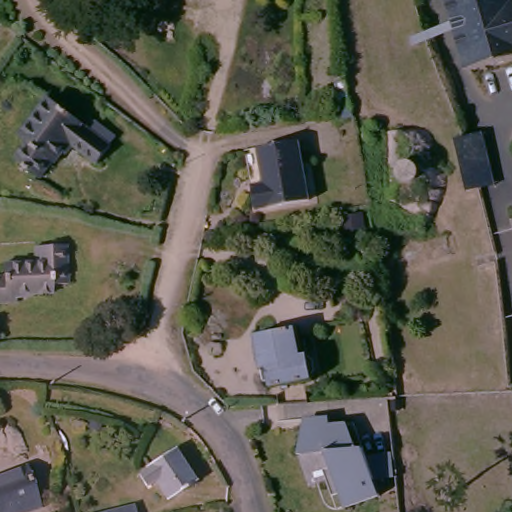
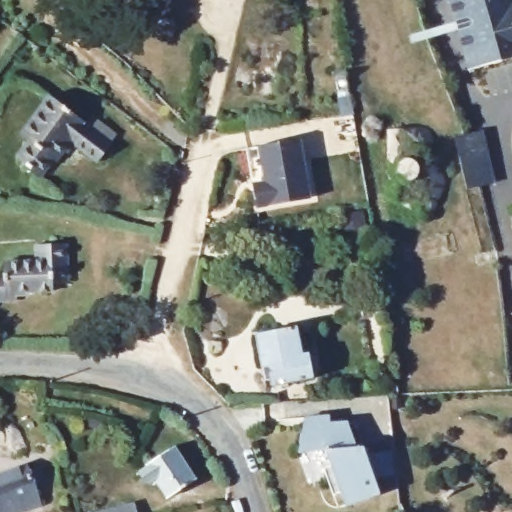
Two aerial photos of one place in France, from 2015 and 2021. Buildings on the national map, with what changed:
unchanged [(512,0),(512,68),(511,65),(507,66),(488,71),(488,72),(489,75),(484,76),(483,73),(474,75),(472,76),(473,79),(469,80),(446,0),(512,0)]
unchanged [(344,94),(333,96),(329,79),(342,77),(344,94)]
unchanged [(107,150),(94,168),(68,149),(53,169),(49,166),(37,182),(13,164),(26,146),(19,141),(49,100),(82,126),(79,129),(107,150)]
unchanged [(457,168),(451,141),(464,138),(481,135),(488,165),(492,188),(478,191),(463,194),(457,168)]
unchanged [(306,203),(251,211),(248,189),(261,187),(255,151),(297,145),(306,203)]
unchanged [(391,213),(385,161),(433,160),(438,207),(391,213)]
unchanged [(72,287),(57,288),(57,293),(17,296),(17,304),(0,305),(0,280),(6,279),(5,266),(39,264),(38,251),(69,248),(72,287)]
unchanged [(319,382),(318,389),(314,390),(315,392),(273,401),(269,380),(263,381),(257,350),(296,342),(302,370),(310,368),(311,372),(314,371),(319,382)]
unchanged [(331,412),(331,420),(348,419),(357,445),(364,445),(379,493),(344,505),(325,447),(298,449),(304,422),(313,421),(313,414),(331,412)]
unchanged [(196,488),(168,506),(153,486),(144,492),(136,481),(144,475),(144,474),(170,453),(196,488)]
unchanged [(31,512),(0,512),(0,477),(24,469),(38,510),(31,512)]
unchanged [(134,512),(117,512),(133,508),(134,512)]

